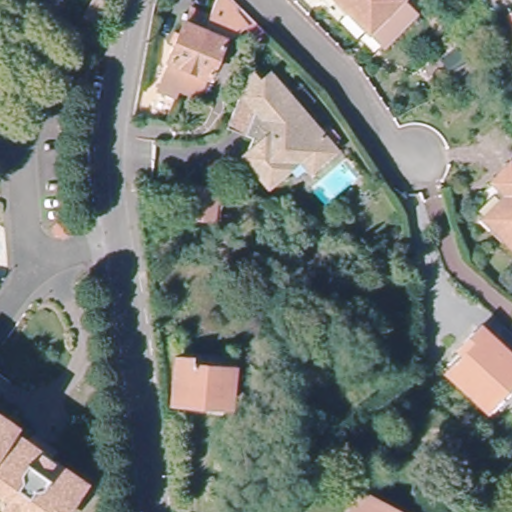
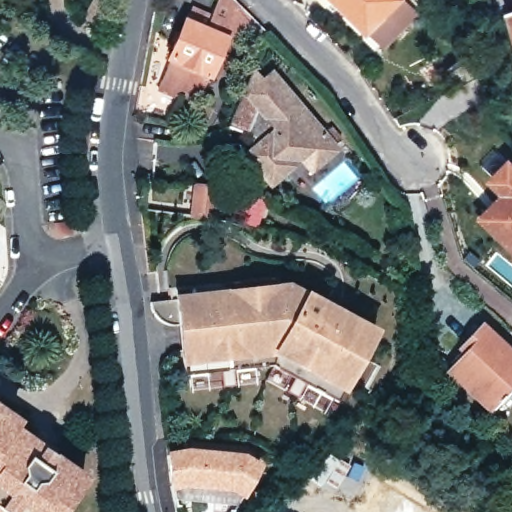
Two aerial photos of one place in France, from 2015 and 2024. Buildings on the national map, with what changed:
unchanged [(330,0),(333,0),(331,2),(330,0)]
unchanged [(421,11),(390,42),(349,0),(411,0),(421,11)]
unchanged [(244,27),(231,27),(225,40),(229,42),(199,102),(178,91),(216,19),(225,2),(244,27)]
unchanged [(508,6),(512,5),(512,18),(508,6)]
unchanged [(216,19),(178,91),(176,94),(159,85),(171,61),(169,60),(189,21),(190,21),(195,12),(205,19),(208,14),(216,19)]
unchanged [(253,134),(247,127),(256,109),(245,97),(258,71),(266,81),(273,76),(302,113),(306,114),(320,131),(326,125),(337,139),(307,165),(295,152),(285,161),(282,171),(274,177),(261,175),(247,160),(242,155),(253,134)]
unchanged [(501,178),(512,166),(512,189),(501,178)]
unchanged [(221,186),(217,216),(187,210),(191,180),(221,186)]
unchanged [(512,197),(512,235),(495,219),(512,197)]
new [(345,394),(274,357),(180,367),(173,296),(286,283),(305,292),(377,331),(345,394)]
unchanged [(493,412),(447,368),(482,330),(512,358),(512,392),(493,412)]
demolished [(195,358),(195,366),(234,370),(230,404),(174,398),(177,357),(195,358)]
unchanged [(0,407),(0,395),(5,398),(0,407)]
unchanged [(17,421),(15,427),(34,440),(40,432),(62,447),(56,456),(86,477),(82,484),(64,512),(6,512),(0,508),(0,408),(5,411),(17,421)]
new [(185,449),(244,455),(262,466),(244,499),(230,492),(185,489),(171,492),(165,453),(185,449)]
new [(346,508),(353,497),(382,512),(322,512),(328,500),(346,508)]
demolished [(383,512),(386,506),(399,512),(383,512)]

